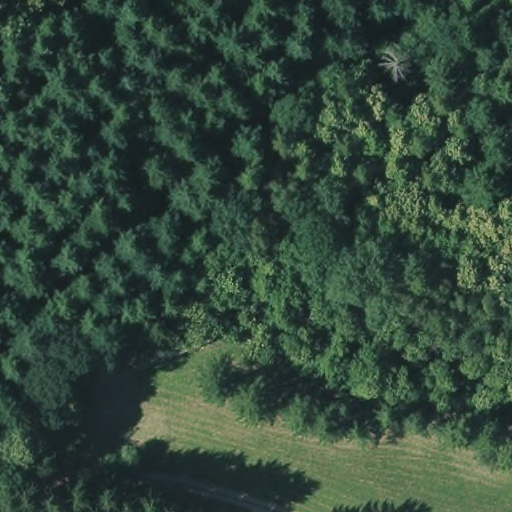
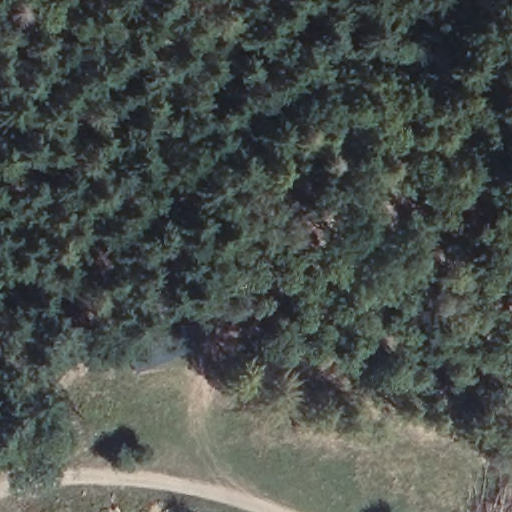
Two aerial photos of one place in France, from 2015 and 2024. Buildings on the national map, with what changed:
unchanged [(222,320),(229,336),(147,370),(141,354),(222,320)]

